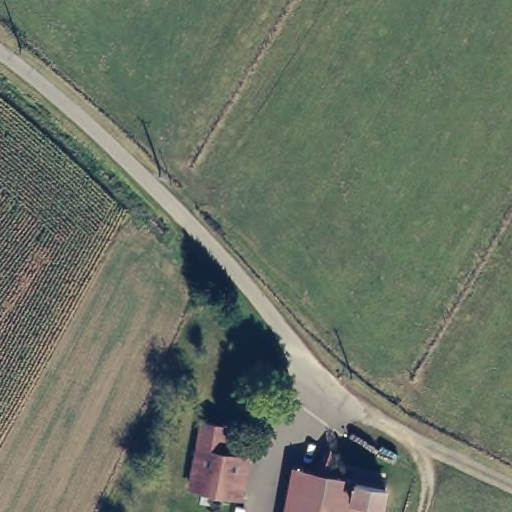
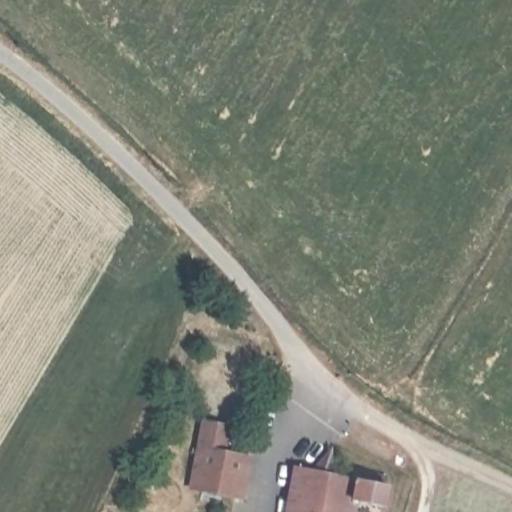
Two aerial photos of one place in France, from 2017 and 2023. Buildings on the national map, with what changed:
unchanged [(241,494),(191,486),(198,443),(203,417),(228,421),(224,448),(249,452),(241,494)]
unchanged [(384,505),(352,499),(350,512),(286,512),(294,465),(388,482),(384,505)]

